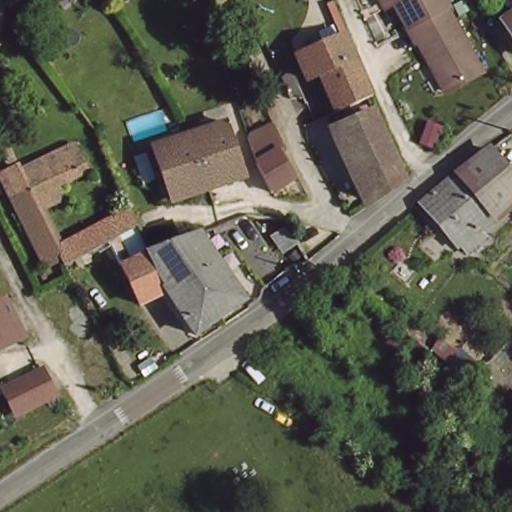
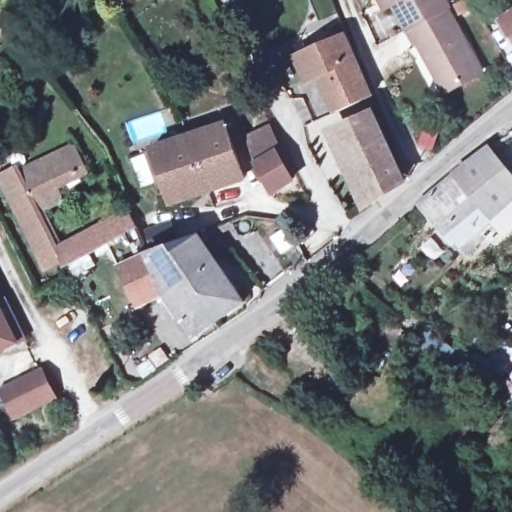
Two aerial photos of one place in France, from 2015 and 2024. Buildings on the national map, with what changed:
unchanged [(383,0),(445,0),(449,7),(447,8),(409,28),(395,2),(386,7),(383,0)]
unchanged [(482,2),(472,9),(467,0),(486,0),(482,2)]
unchanged [(447,8),(481,72),(445,92),(419,42),(417,44),(409,28),(447,8)]
unchanged [(498,25),(512,16),(512,47),(498,25)]
unchanged [(297,50),(344,29),(369,87),(369,90),(334,105),(333,102),(319,67),(306,72),(296,50),(297,50)]
unchanged [(373,105),(397,169),(398,172),(365,198),(333,122),(373,105)]
unchanged [(272,198),(254,162),(246,139),(272,127),(298,182),(272,198)]
unchanged [(241,181),(226,187),(201,196),(178,204),(164,207),(146,157),(183,143),(221,130),(241,181)]
unchanged [(18,182),(72,152),(82,169),(26,200),(55,256),(127,217),(136,232),(129,236),(109,247),(74,267),(70,270),(62,275),(59,269),(43,277),(23,240),(7,207),(0,191),(0,184),(14,176),(18,182)]
unchanged [(502,171),(512,183),(512,208),(479,237),(486,247),(469,263),(421,211),(491,157),(502,171)]
unchanged [(194,240),(200,238),(213,265),(243,304),(213,325),(191,338),(161,295),(153,271),(149,260),(148,258),(194,240)]
unchanged [(149,260),(153,271),(161,295),(138,315),(123,279),(149,260)]
unchanged [(28,328),(0,346),(0,297),(6,293),(28,328)]
unchanged [(38,371),(53,395),(18,417),(3,393),(38,371)]

